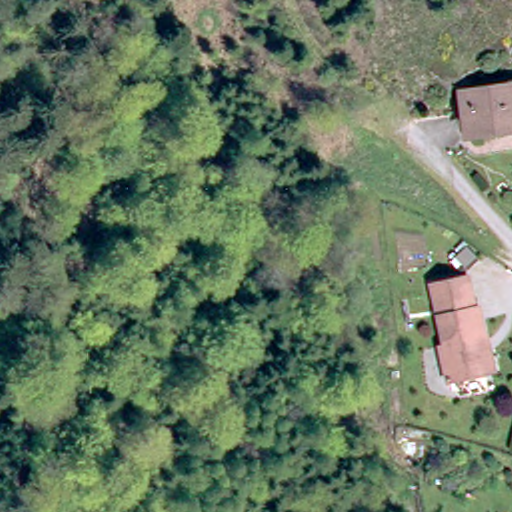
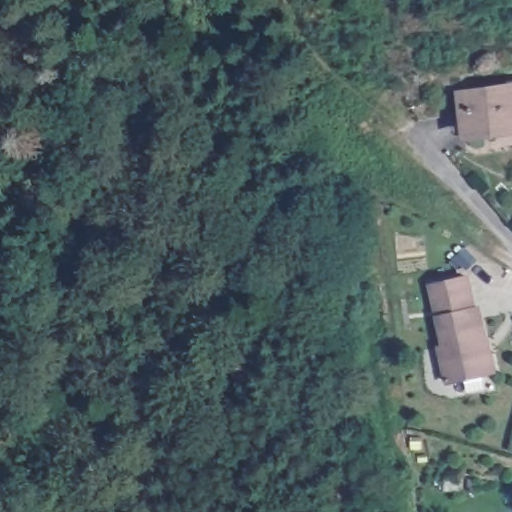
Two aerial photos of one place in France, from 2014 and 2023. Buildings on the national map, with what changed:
unchanged [(512,83),(512,129),(470,135),(465,90),(512,83)]
unchanged [(496,370),(487,371),(447,377),(441,340),(447,340),(437,279),(472,275),(478,308),(482,308),(487,340),(492,339),(496,370)]

